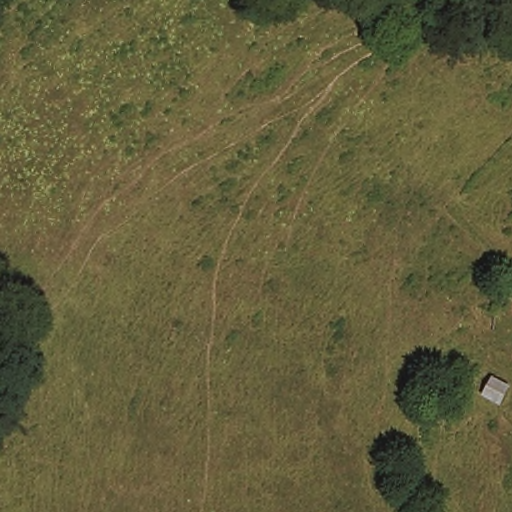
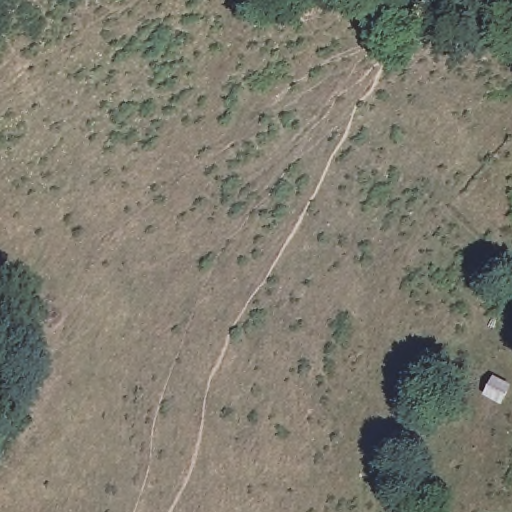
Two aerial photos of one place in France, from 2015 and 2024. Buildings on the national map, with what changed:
unchanged [(502,412),(480,401),(492,379),(512,389),(512,390),(502,412)]

